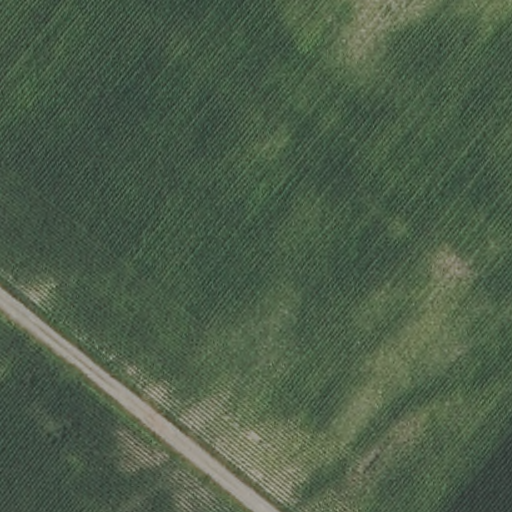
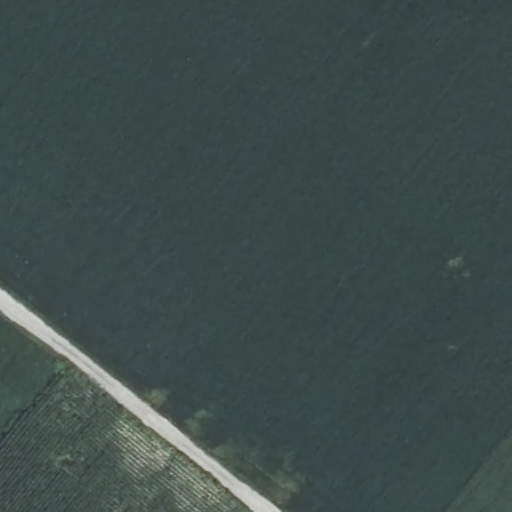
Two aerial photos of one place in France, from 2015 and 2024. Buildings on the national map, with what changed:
[]

